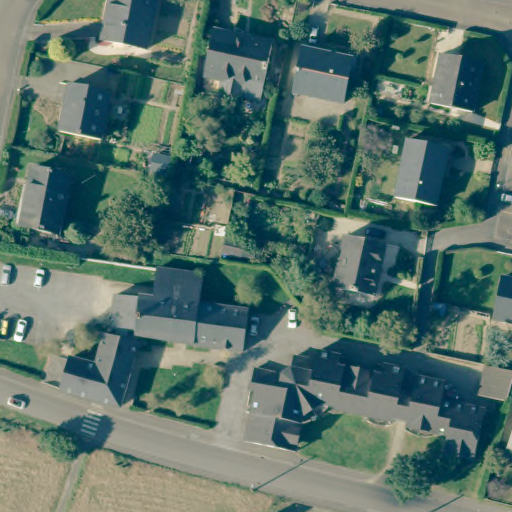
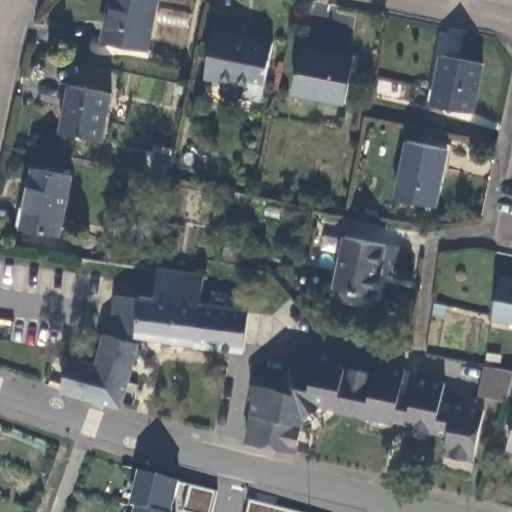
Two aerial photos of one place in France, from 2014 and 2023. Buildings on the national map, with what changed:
unchanged [(108,40),(116,0),(162,0),(152,49),(108,40)]
unchanged [(266,101),(247,97),(240,101),(231,99),(225,92),(227,79),(210,76),(219,34),(240,38),(240,35),(278,42),(266,101)]
unchanged [(359,59),(350,103),(298,92),(307,48),(359,59)]
unchanged [(437,105),(447,56),(488,64),(478,113),(437,105)]
unchanged [(106,140),(65,132),(75,85),(116,93),(106,140)]
unchanged [(436,206),(396,198),(408,141),(448,149),(436,206)]
unchanged [(76,176),(65,234),(26,227),(39,168),(76,176)]
unchanged [(386,244),(375,296),(335,287),(345,236),(386,244)]
unchanged [(145,296),(159,297),(161,268),(206,275),(202,304),(252,311),(247,352),(199,346),(141,336),(141,342),(144,342),(125,407),(66,390),(75,357),(102,365),(110,333),(122,336),(123,330),(116,329),(120,295),(145,298),(145,296)]
unchanged [(500,318),(507,278),(512,279),(512,321),(500,318)]
unchanged [(449,453),(453,435),(411,427),(412,422),(400,419),(400,422),(340,409),(340,407),(326,404),(308,416),(300,452),(250,441),(262,385),(256,384),(260,368),(295,376),(299,356),(320,361),(322,351),(345,356),(343,366),(386,374),(388,365),(410,369),(404,399),(416,401),(421,377),(450,383),(446,401),(489,410),(478,460),(449,453)]
unchanged [(484,396),(490,365),(512,370),(512,401),(484,396)]
unchanged [(508,452),(512,441),(512,454),(508,452)]
new [(172,512),(133,512),(134,507),(131,507),(140,472),(179,482),(172,512)]
new [(217,492),(213,512),(184,512),(190,485),(217,492)]
new [(291,512),(247,512),(249,501),(291,512)]

